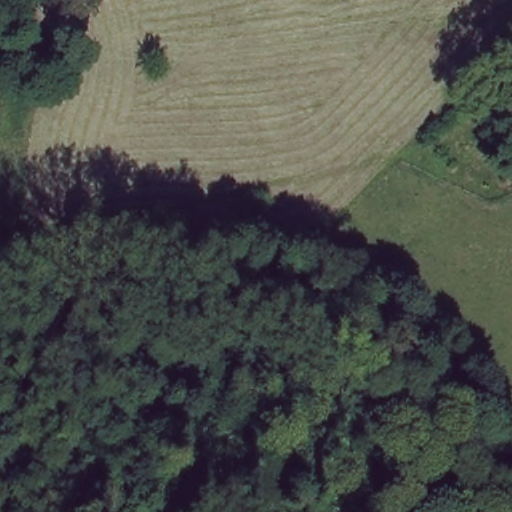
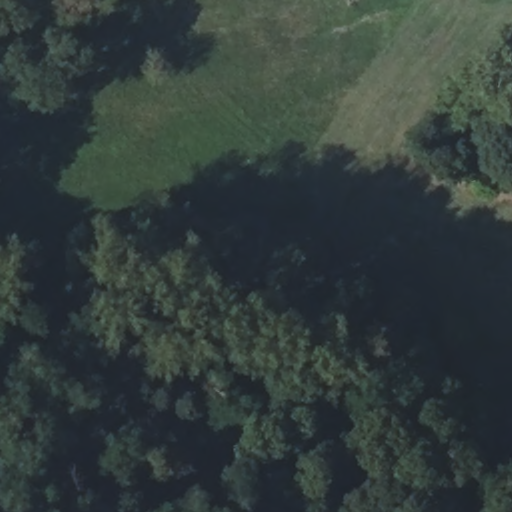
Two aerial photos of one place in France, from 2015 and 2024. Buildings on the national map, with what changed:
[]

